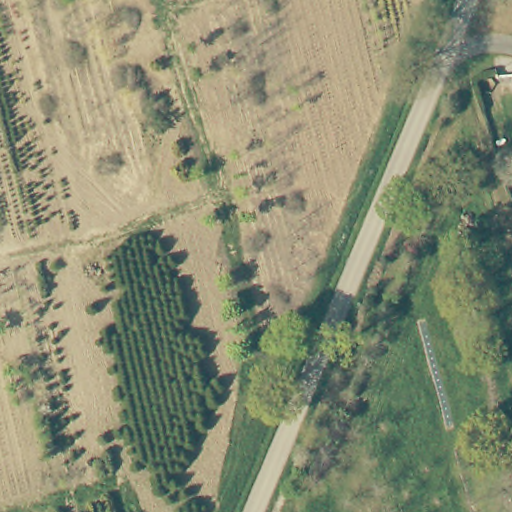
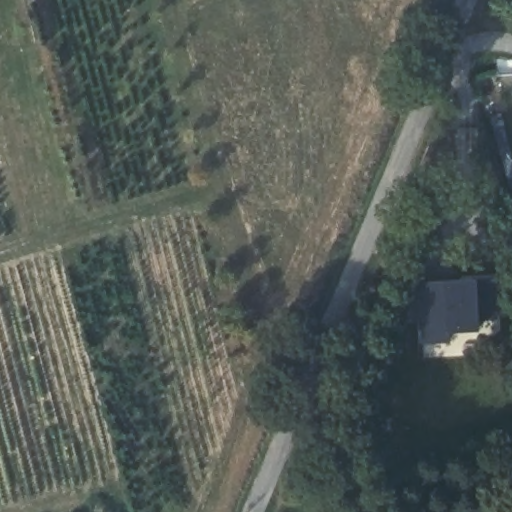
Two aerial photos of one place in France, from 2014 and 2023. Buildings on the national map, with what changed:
new [(498,319),(478,319),(479,331),(447,332),(449,343),(422,343),(418,282),(442,280),(474,278),(491,277),(498,319)]

